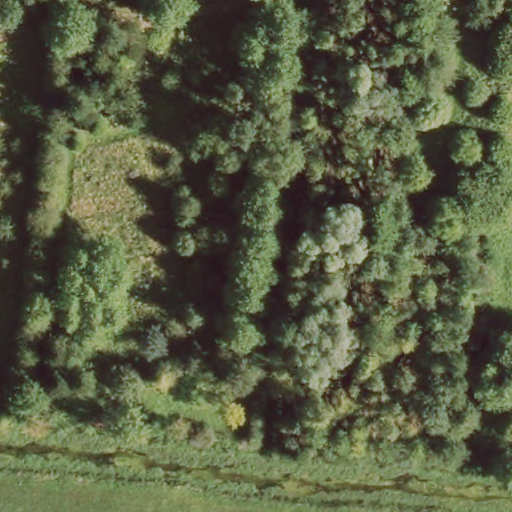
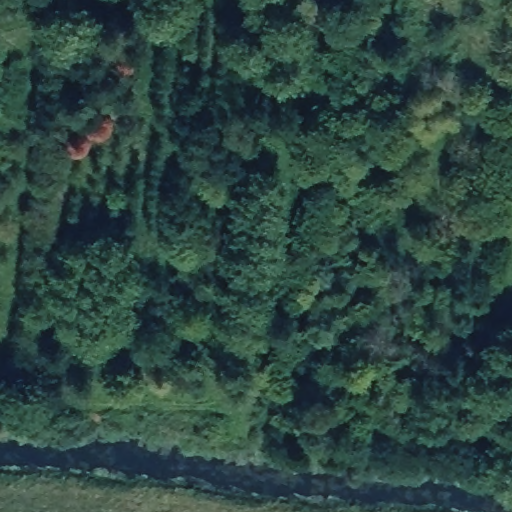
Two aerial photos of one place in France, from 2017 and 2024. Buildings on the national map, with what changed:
[]

